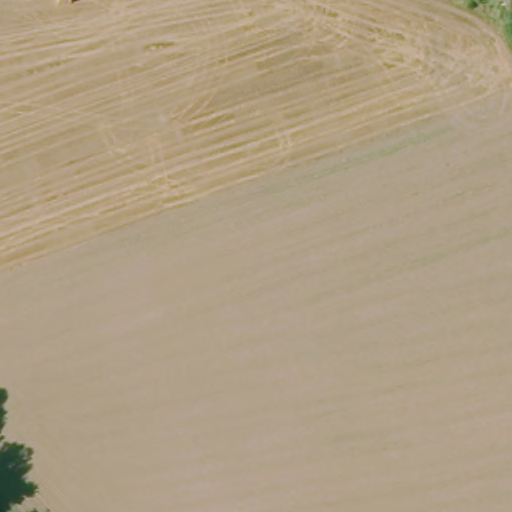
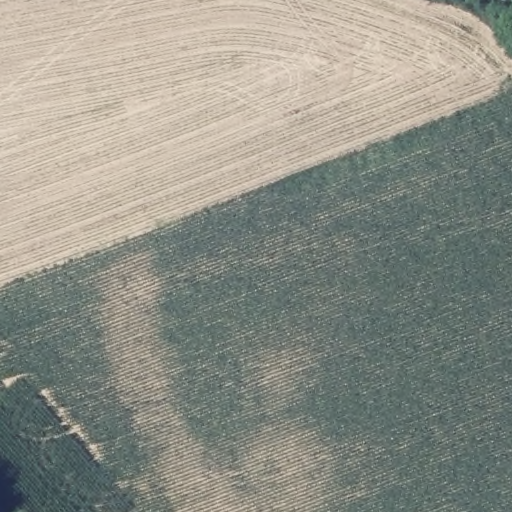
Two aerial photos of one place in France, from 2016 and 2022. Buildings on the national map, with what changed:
[]

